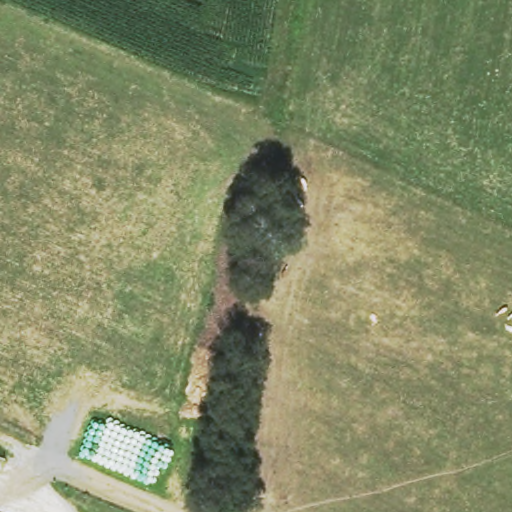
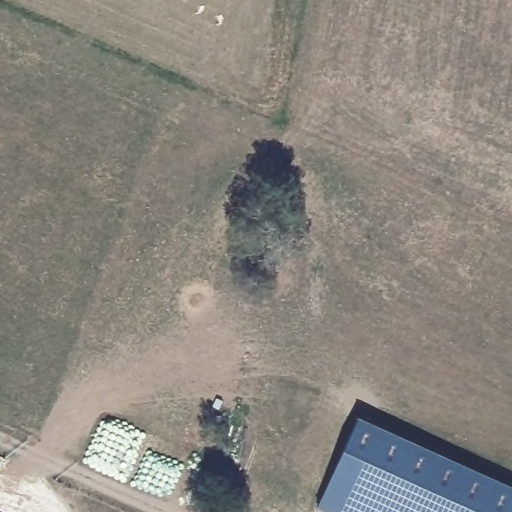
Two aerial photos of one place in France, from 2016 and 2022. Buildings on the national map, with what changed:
new [(512,512),(330,512),(317,506),(360,415),(512,485),(512,512)]

